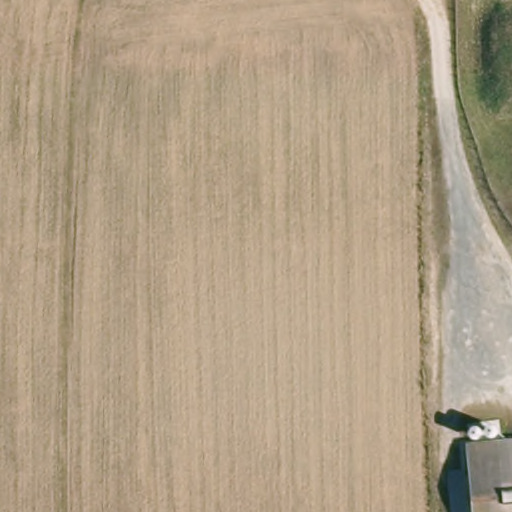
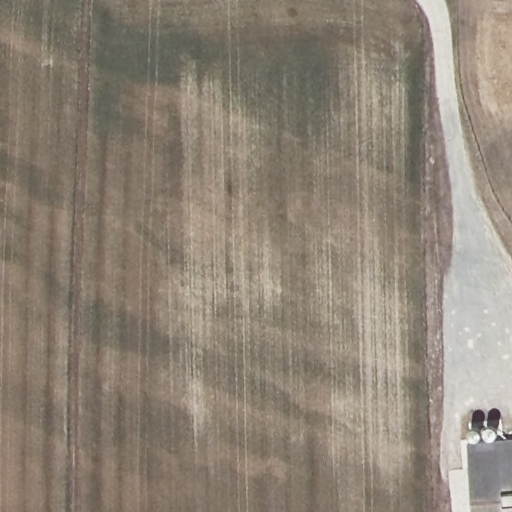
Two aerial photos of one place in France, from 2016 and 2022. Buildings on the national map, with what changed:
unchanged [(512,512),(466,512),(461,453),(512,449),(512,512)]

